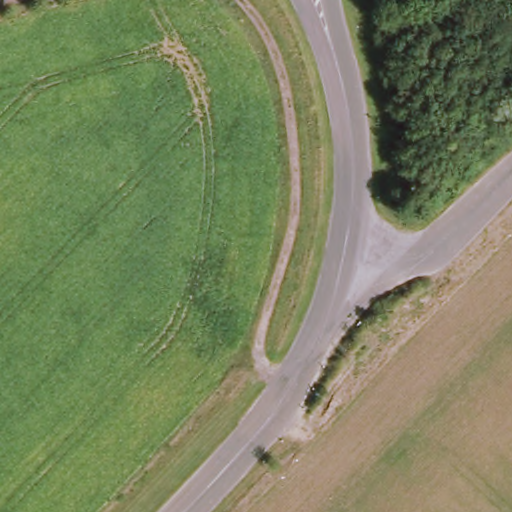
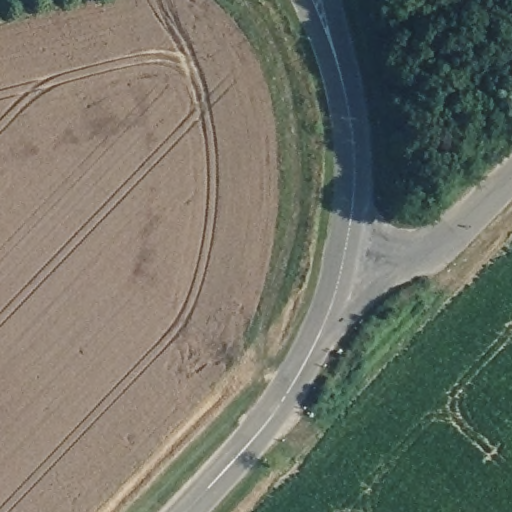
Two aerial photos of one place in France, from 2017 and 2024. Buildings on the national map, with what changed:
[]

